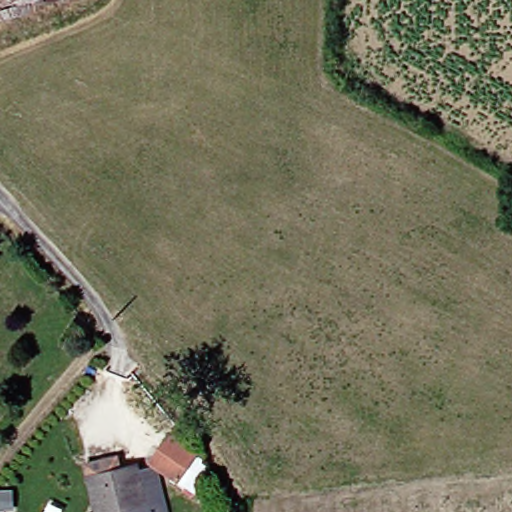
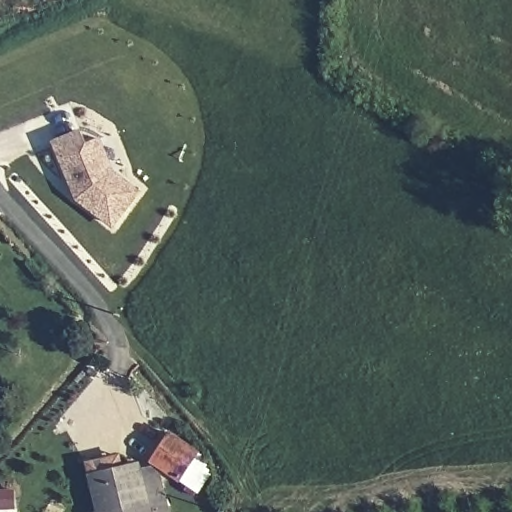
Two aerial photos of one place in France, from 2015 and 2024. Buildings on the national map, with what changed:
new [(79,130),(84,142),(98,137),(112,172),(141,192),(110,230),(74,201),(49,141),(79,130)]
unchanged [(204,453),(187,477),(159,458),(176,433),(204,453)]
unchanged [(167,486),(174,512),(104,512),(95,477),(91,463),(123,455),(127,470),(143,465),(145,475),(163,470),(167,486)]
unchanged [(0,512),(0,496),(11,495),(12,512),(0,512)]

